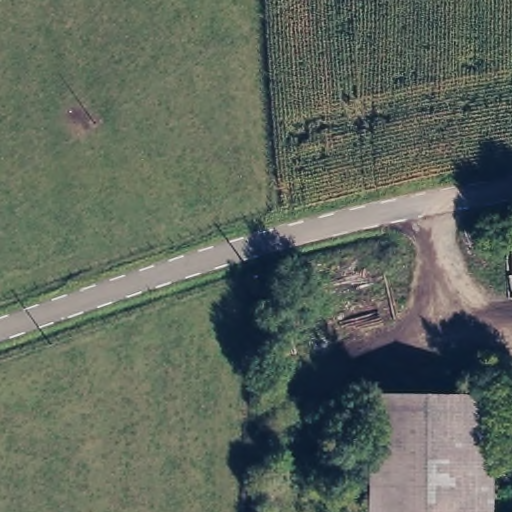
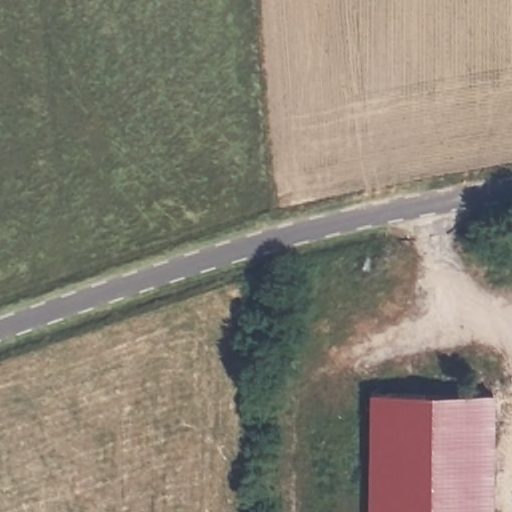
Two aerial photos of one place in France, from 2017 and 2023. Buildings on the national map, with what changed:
unchanged [(365,512),(368,393),(497,393),(497,512),(365,512)]

